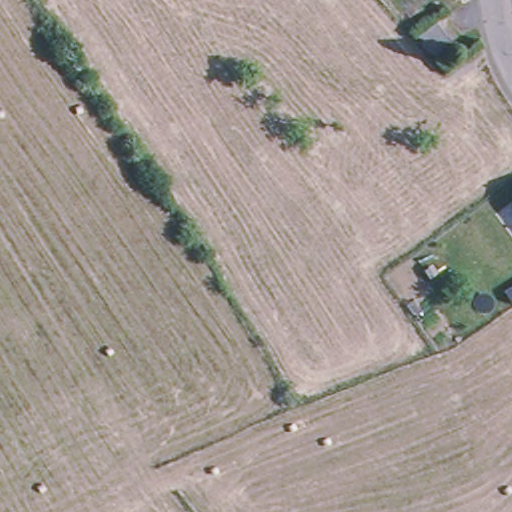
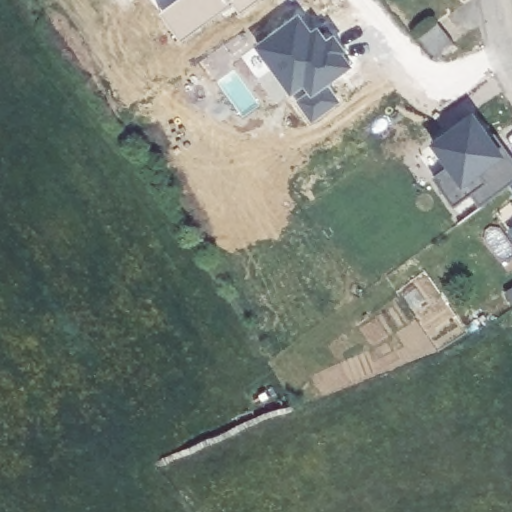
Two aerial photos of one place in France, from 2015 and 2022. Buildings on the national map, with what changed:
new [(179,0),(259,0),(240,14),(232,3),(179,42),(158,16),(179,0)]
new [(391,0),(412,0),(421,11),(403,24),(386,4),(391,0)]
new [(310,35),(317,29),(326,42),(333,35),(346,55),(342,57),(351,68),(327,87),(339,104),(311,122),(297,103),(308,95),(303,87),(291,96),(257,47),(297,16),(310,35)]
new [(453,44),(433,60),(416,39),(437,23),(453,44)]
new [(490,142),(495,135),(512,160),(512,184),(479,208),(470,194),(453,207),(433,182),(448,170),(430,146),(470,115),(490,142)]
new [(511,302),(504,292),(512,287),(512,302),(511,302)]

